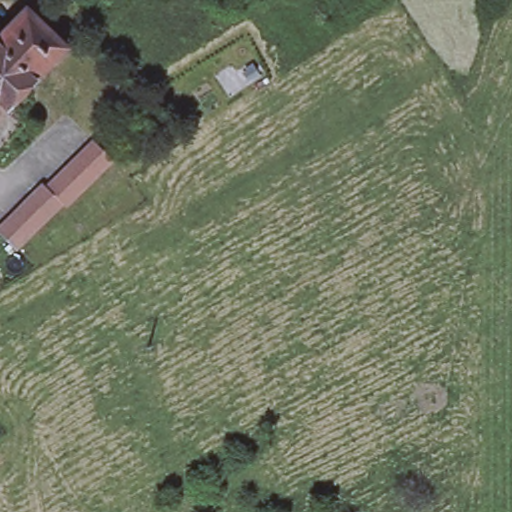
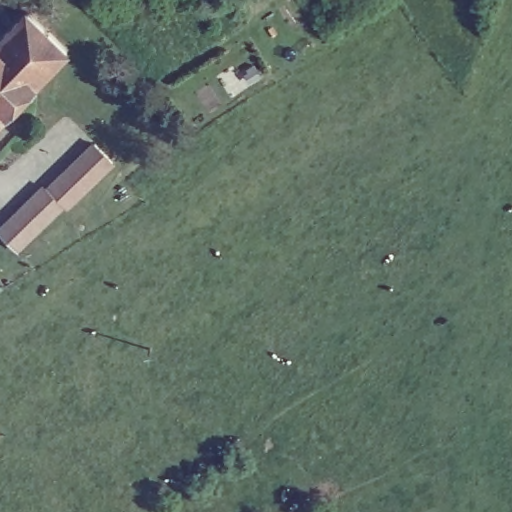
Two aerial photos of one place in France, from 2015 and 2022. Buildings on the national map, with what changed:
unchanged [(60,52),(0,117),(0,35),(20,14),(60,52)]
unchanged [(43,186),(45,188),(56,176),(66,165),(78,152),(89,141),(110,162),(100,174),(89,185),(78,197),(66,209),(63,206),(52,219),(40,231),(28,242),(18,254),(0,237),(0,232),(8,223),(20,211),(30,199),(43,186)]

